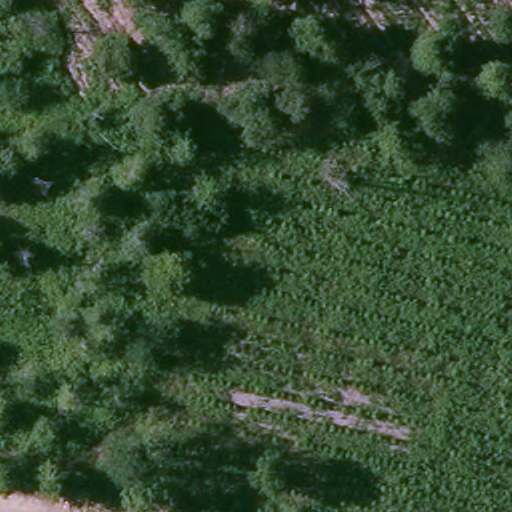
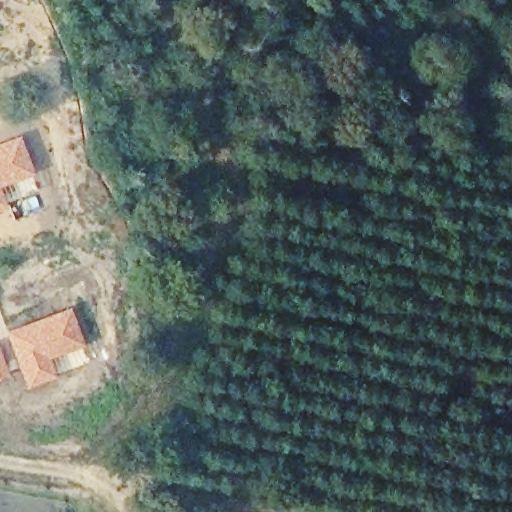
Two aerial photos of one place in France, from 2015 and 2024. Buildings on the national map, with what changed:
new [(19,139),(32,171),(0,183),(0,147),(19,139)]
new [(4,205),(0,207),(0,193),(4,205)]
new [(69,310),(82,344),(47,357),(53,377),(30,384),(11,333),(69,310)]

